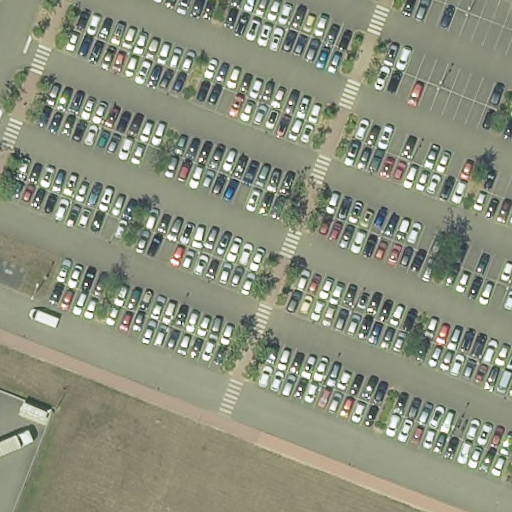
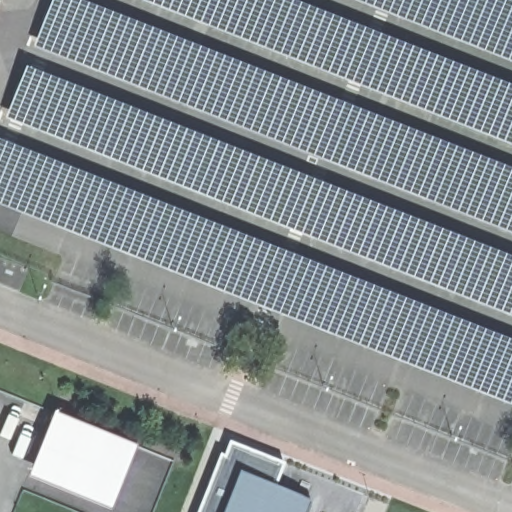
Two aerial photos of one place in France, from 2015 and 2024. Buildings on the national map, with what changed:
new [(512,236),(34,49),(51,0),(78,0),(512,171),(512,236)]
new [(512,146),(138,0),(290,0),(512,87),(512,146)]
new [(512,62),(353,0),(512,0),(512,62)]
new [(512,318),(5,119),(24,67),(512,258),(512,318)]
new [(512,407),(0,206),(0,141),(512,342),(512,407)]
new [(110,509),(28,475),(53,412),(134,445),(110,509)]
new [(198,512),(220,454),(223,455),(228,441),(283,462),(272,486),(310,501),(305,512),(198,512)]

